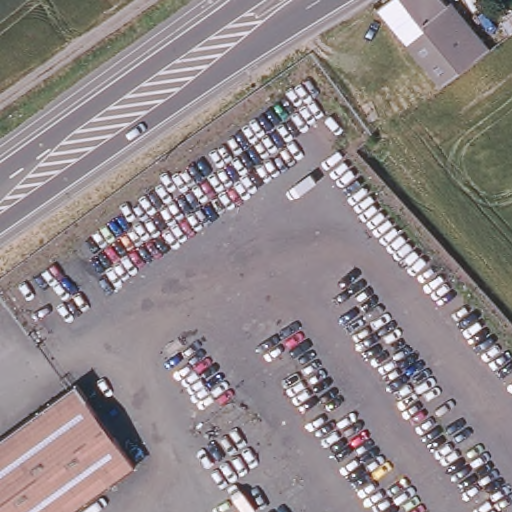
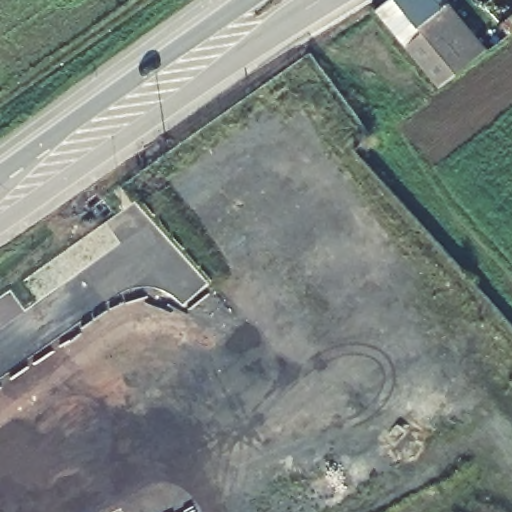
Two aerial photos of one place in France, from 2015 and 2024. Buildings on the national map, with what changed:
unchanged [(467,33),(437,53),(433,52),(415,67),(397,45),(419,30),(393,0),(437,0),(458,23),(467,33)]
unchanged [(433,52),(437,53),(467,33),(480,47),(482,50),(476,54),(432,86),(415,67),(433,52)]
demolished [(61,405),(113,475),(65,512),(0,512),(0,440),(55,398),(61,405)]

